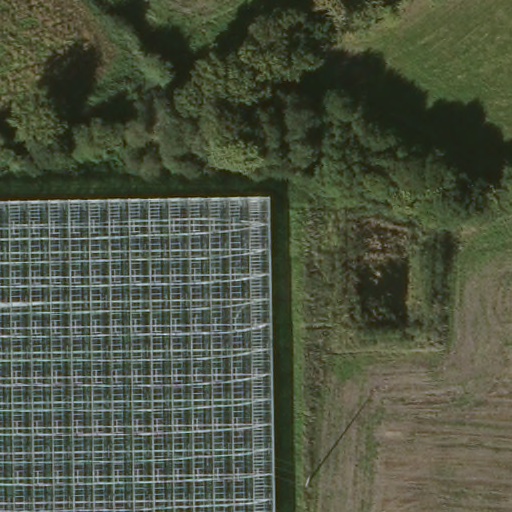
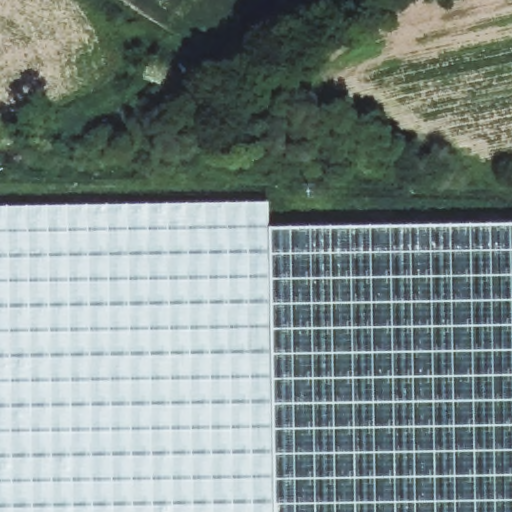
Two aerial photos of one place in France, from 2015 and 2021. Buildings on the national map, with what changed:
unchanged [(267,208),(267,459),(267,512),(0,512),(0,211),(267,208)]
new [(267,459),(267,227),(512,222),(512,512),(267,512),(267,459)]

